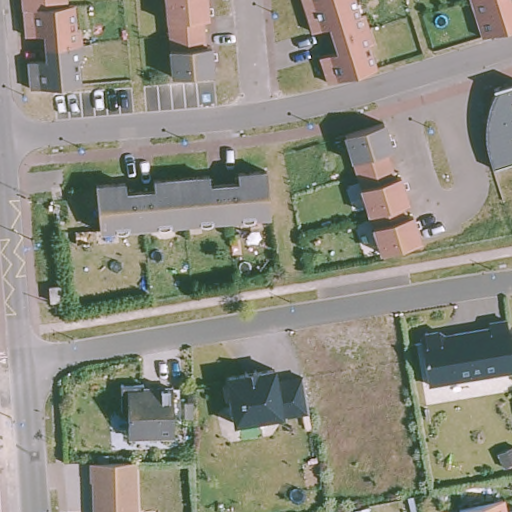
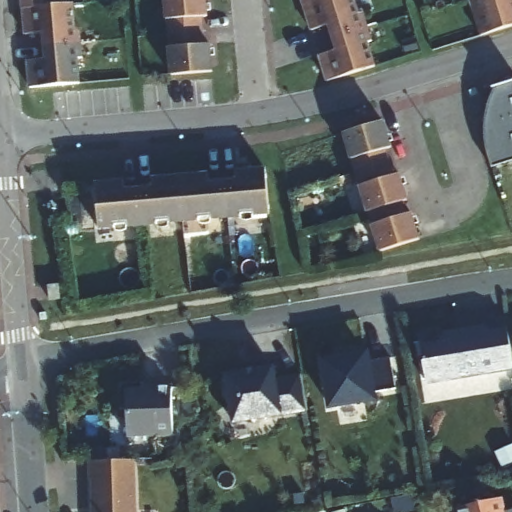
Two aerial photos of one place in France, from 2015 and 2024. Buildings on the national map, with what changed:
unchanged [(75,34),(80,33),(81,48),(82,64),(77,64),(80,89),(30,93),(27,65),(46,64),(45,51),(44,39),(25,40),(23,13),(22,0),(65,0),(65,9),(73,9),(75,34)]
unchanged [(167,39),(164,0),(205,0),(207,22),(202,23),(203,36),(205,50),(210,50),(212,78),(171,81),(167,39)]
unchanged [(337,54),(333,43),(329,30),(311,35),(304,10),(301,0),(353,0),(358,19),(363,17),(367,31),(372,46),(367,48),(375,71),(327,86),(319,60),(337,54)]
unchanged [(480,36),(469,0),(512,0),(512,27),(480,36)]
unchanged [(489,165),(486,157),(485,149),(484,140),(484,132),(485,124),(486,116),(488,108),(491,100),(494,93),(512,87),(512,167),(491,173),(489,165)]
unchanged [(368,213),(356,173),(345,133),(383,121),(391,148),(386,149),(390,163),(395,176),(400,174),(407,200),(402,202),(406,215),(411,214),(419,240),(380,252),(368,213)]
unchanged [(95,184),(124,182),(125,191),(139,189),(153,189),(152,179),(180,177),(208,174),(209,184),(223,183),(237,181),(236,172),(265,169),(270,214),(226,219),(184,222),(142,225),(98,229),(95,184)]
unchanged [(48,285),(58,284),(60,299),(50,300),(48,285)]
unchanged [(512,359),(512,368),(427,382),(420,337),(423,332),(437,330),(442,334),(489,326),(488,321),(505,318),(512,359)]
new [(376,394),(378,401),(330,409),(319,361),(370,351),(372,364),(391,359),(396,388),(376,394)]
unchanged [(233,422),(230,401),(225,398),(222,383),(225,378),(225,376),(243,373),(243,371),(255,369),(255,371),(273,368),(275,380),(301,376),(307,411),(233,422)]
unchanged [(143,382),(143,387),(171,388),(172,435),(126,434),(127,408),(120,408),(120,382),(143,382)]
unchanged [(133,512),(93,512),(92,479),(90,479),(90,462),(132,461),(133,512)]
unchanged [(500,498),(503,512),(458,512),(457,507),(500,498)]

